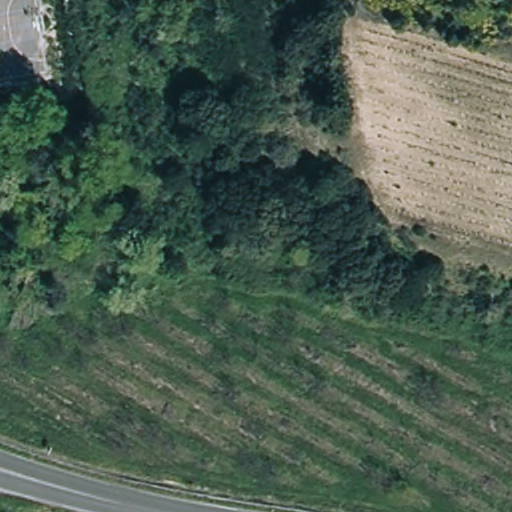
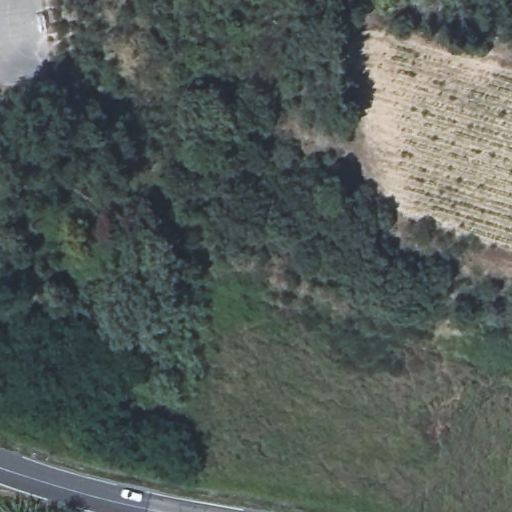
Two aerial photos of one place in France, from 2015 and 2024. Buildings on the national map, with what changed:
unchanged [(226,95),(222,109),(200,101),(204,87),(226,95)]

